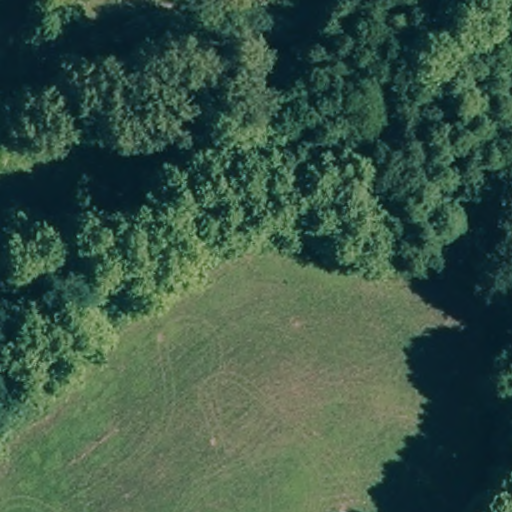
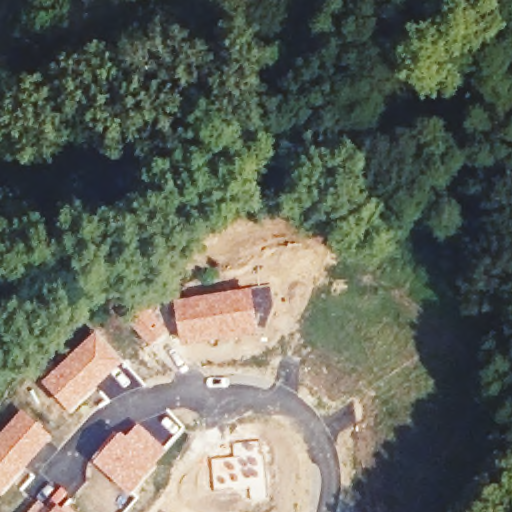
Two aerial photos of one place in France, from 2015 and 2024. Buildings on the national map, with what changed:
new [(270,285),(273,305),(268,319),(262,317),(258,317),(260,334),(232,341),(180,348),(174,300),(270,285)]
new [(150,311),(169,332),(150,349),(131,327),(150,311)]
new [(96,331),(125,362),(70,415),(41,384),(96,331)]
new [(54,437),(0,497),(0,435),(24,409),(54,437)]
new [(120,433),(125,437),(139,423),(168,450),(130,498),(92,463),(120,433)]
new [(252,500),(250,486),(214,489),(210,460),(234,458),(232,442),(258,439),(260,455),(263,453),(267,499),(252,500)]
new [(27,512),(40,499),(52,511),(60,503),(69,512),(27,512)]

